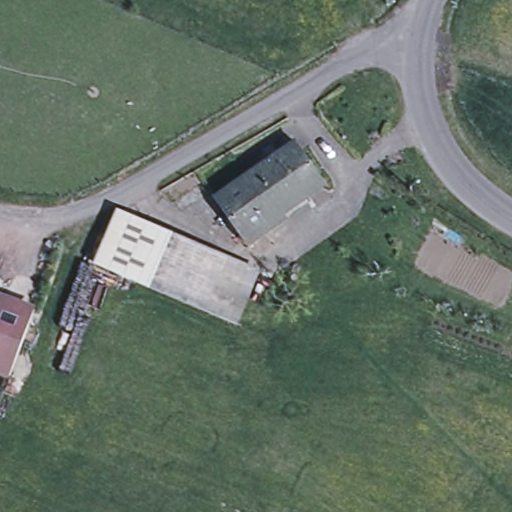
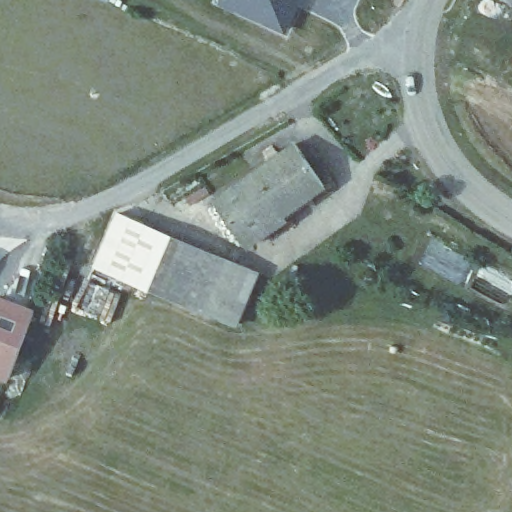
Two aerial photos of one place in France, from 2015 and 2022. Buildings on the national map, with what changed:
new [(297,3),(297,4),(286,29),(237,7),(224,1),(224,0),(298,0),(297,3)]
unchanged [(320,186),(277,215),(281,219),(242,245),(212,199),(292,144),(320,186)]
unchanged [(99,264),(121,213),(158,229),(135,279),(99,264)]
unchanged [(257,272),(235,322),(135,279),(158,229),(257,272)]
unchanged [(5,381),(0,380),(0,305),(30,315),(5,381)]

